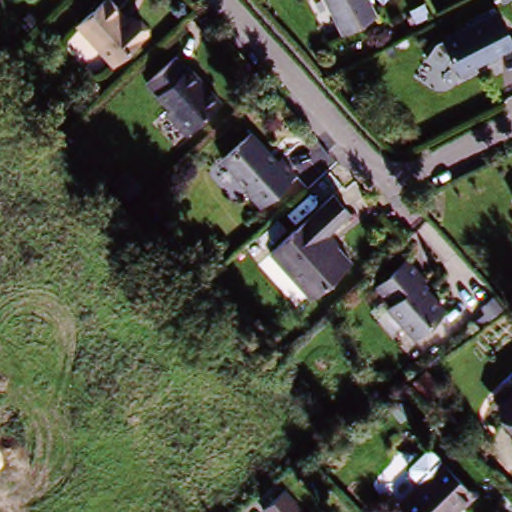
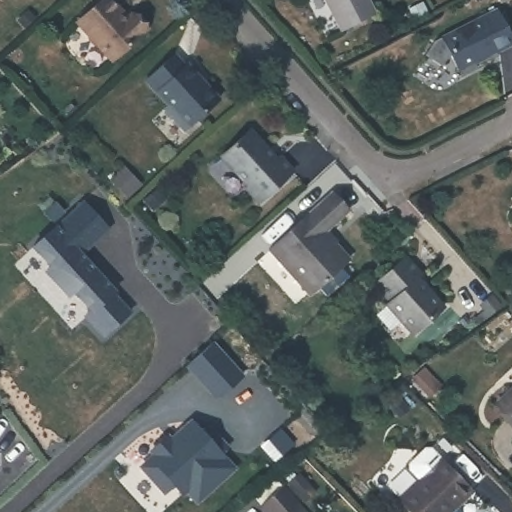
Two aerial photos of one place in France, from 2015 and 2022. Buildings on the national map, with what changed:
unchanged [(342,35),(324,0),(366,0),(375,18),(342,35)]
unchanged [(112,67),(77,29),(107,2),(127,24),(131,20),(146,37),(112,67)]
unchanged [(512,45),(512,55),(462,81),(444,47),(498,18),(512,45)]
unchanged [(175,61),(185,71),(187,69),(200,82),(197,85),(205,93),(207,90),(220,104),(185,135),(165,113),(167,110),(147,87),(175,61)]
unchanged [(248,136),(275,165),(277,162),(291,176),(258,207),(245,193),(247,190),(220,160),(248,136)]
unchanged [(128,205),(112,186),(123,176),(140,194),(128,205)]
unchanged [(328,238),(352,265),(313,300),(272,256),(335,199),(351,218),(328,238)]
new [(82,205),(107,233),(81,257),(115,294),(112,296),(130,315),(103,340),(85,320),(90,315),(72,295),(67,300),(45,276),(50,271),(32,251),(82,205)]
unchanged [(377,289),(405,264),(422,282),(418,285),(444,313),(413,341),(388,314),(393,309),(377,289)]
new [(187,366),(213,343),(242,375),(220,395),(213,394),(187,366)]
unchanged [(430,405),(414,390),(428,376),(443,390),(430,405)]
unchanged [(492,410),(512,390),(512,430),(492,410)]
new [(156,461),(152,457),(169,442),(175,450),(182,445),(178,441),(192,428),(203,439),(210,433),(228,453),(222,459),(235,475),(198,508),(188,497),(185,500),(175,490),(166,498),(143,473),(156,461)]
unchanged [(426,452),(472,496),(456,512),(405,512),(399,506),(420,484),(410,476),(410,467),(426,452)]
new [(322,493),(300,511),(288,497),(292,494),(282,483),(300,467),(322,493)]
unchanged [(278,502),(269,512),(258,512),(252,506),(268,492),(278,502)]

